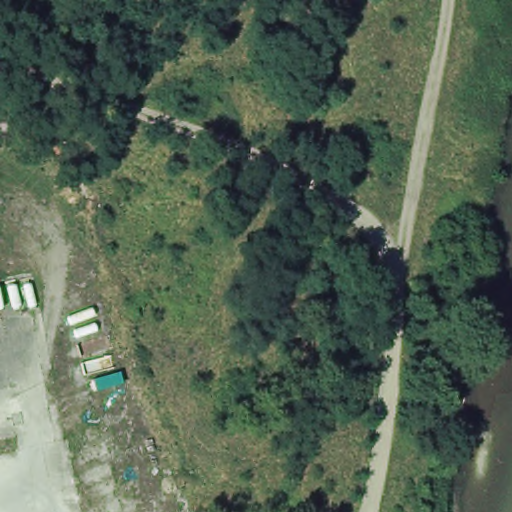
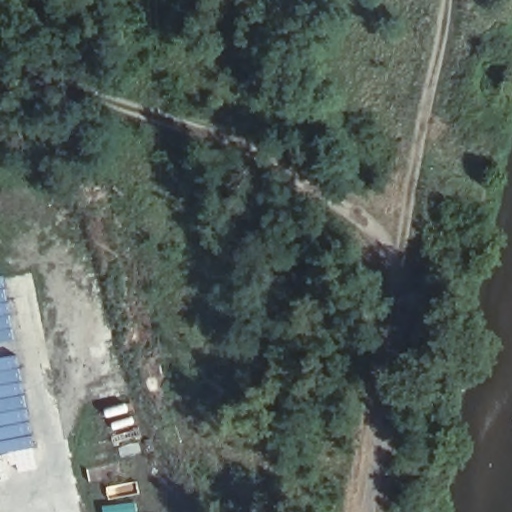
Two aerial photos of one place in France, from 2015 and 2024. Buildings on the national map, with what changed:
new [(13,341),(0,343),(0,276),(3,275),(13,341)]
new [(0,482),(0,456),(0,357),(17,355),(31,427),(33,450),(5,456),(9,480),(0,482)]

